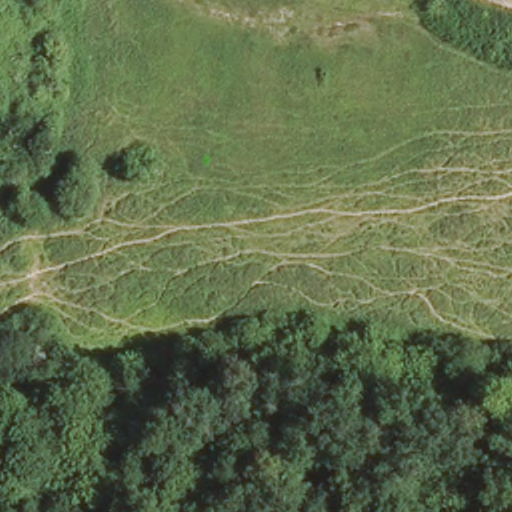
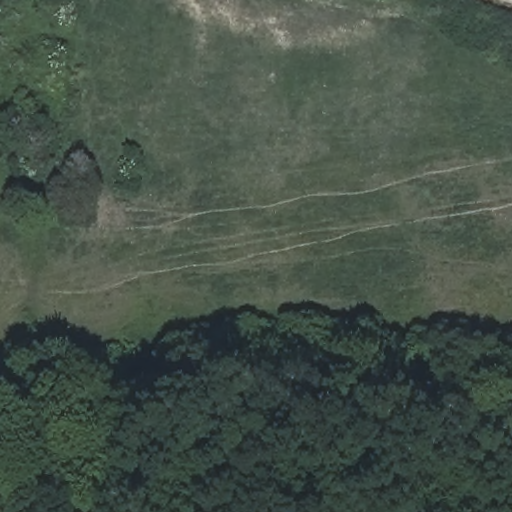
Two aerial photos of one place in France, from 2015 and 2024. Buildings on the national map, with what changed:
[]

